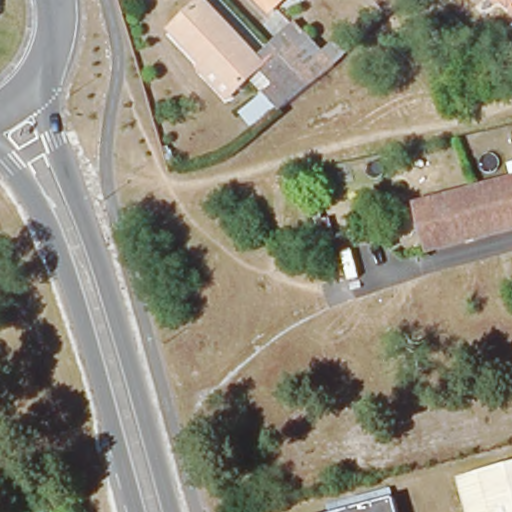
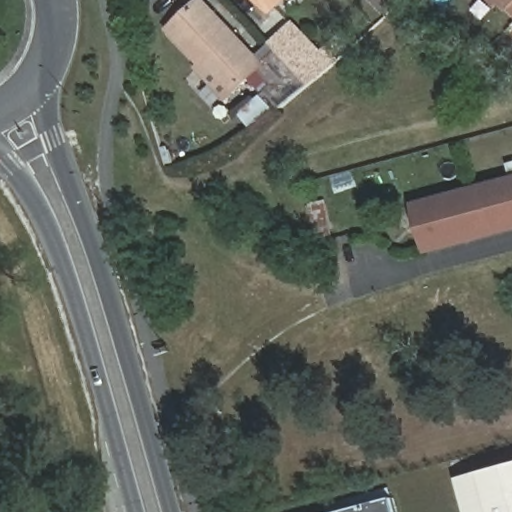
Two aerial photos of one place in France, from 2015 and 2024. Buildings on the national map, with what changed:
unchanged [(259,0),(279,0),(269,10),(259,0)]
unchanged [(389,15),(375,0),(399,0),(402,3),(389,15)]
unchanged [(502,0),(512,0),(512,10),(502,0)]
unchanged [(245,114),(268,92),(278,84),(264,68),(239,90),(212,61),(208,65),(176,31),(207,1),(261,58),(276,44),(303,71),(312,81),(282,108),(258,130),(245,114)]
unchanged [(309,34),(325,50),(342,34),(356,49),(338,65),(315,85),(312,81),(303,71),(276,44),(297,25),(307,36),(309,34)]
unchanged [(512,180),(512,230),(496,235),(483,187),(512,180)]
unchanged [(483,187),(496,235),(433,252),(421,204),(483,187)]
unchanged [(313,224),(328,220),(331,235),(317,238),(313,224)]
unchanged [(458,479),(512,464),(512,512),(467,512),(458,479)]
unchanged [(393,498),(397,512),(339,512),(393,498)]

